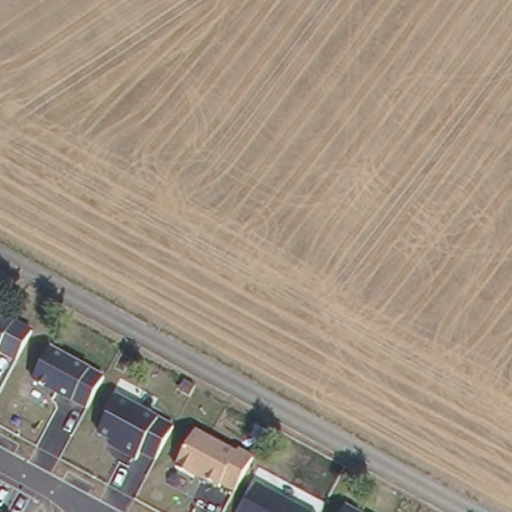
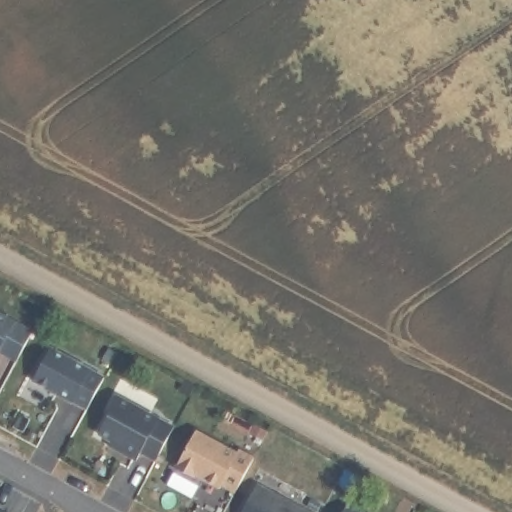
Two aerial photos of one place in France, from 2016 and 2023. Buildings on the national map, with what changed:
unchanged [(0,352),(0,309),(20,320),(17,324),(32,332),(17,361),(1,351),(0,352)]
unchanged [(32,382),(52,347),(106,376),(88,410),(32,382)]
unchanged [(141,454),(138,460),(109,446),(111,440),(99,432),(117,395),(175,428),(156,462),(141,454)]
unchanged [(177,465),(197,430),(239,451),(240,448),(254,457),(235,495),(177,465)]
unchanged [(310,512),(243,512),(258,485),(310,512)]
unchanged [(359,512),(342,512),(346,505),(359,512)]

